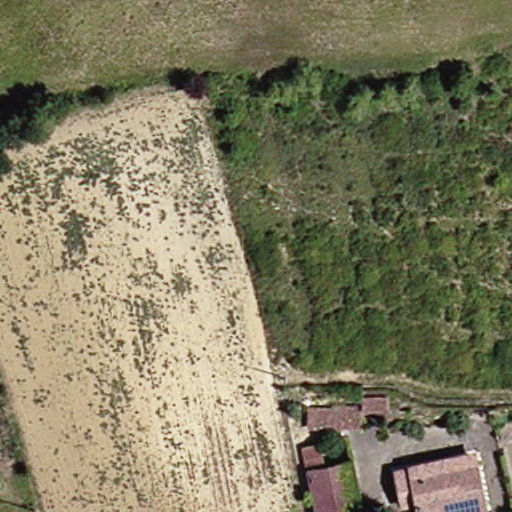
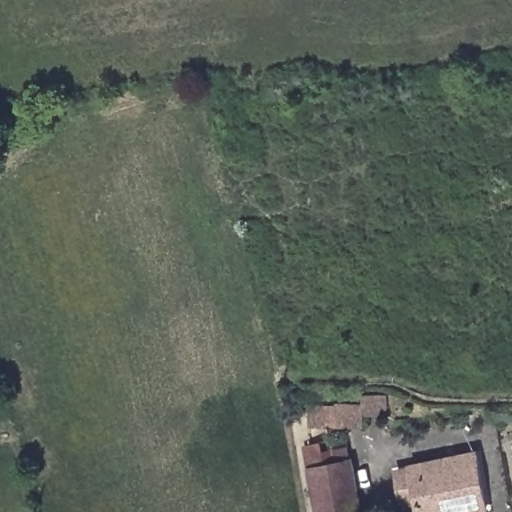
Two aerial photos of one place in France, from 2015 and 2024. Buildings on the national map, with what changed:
unchanged [(316,422),(304,421),(305,400),(332,401),(332,399),(357,399),(357,390),(382,390),(382,404),(382,410),(358,409),(358,416),(358,423),(316,422)]
unchanged [(317,444),(322,467),(350,462),(360,512),(317,512),(304,447),(317,444)]
unchanged [(479,503),(457,508),(456,502),(415,510),(412,495),(397,498),(391,468),(470,452),(479,503)]

